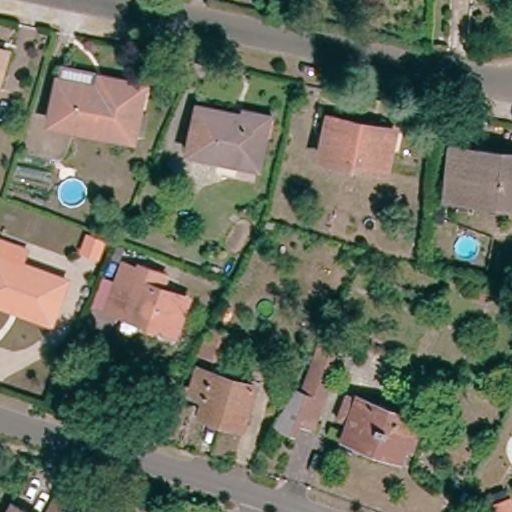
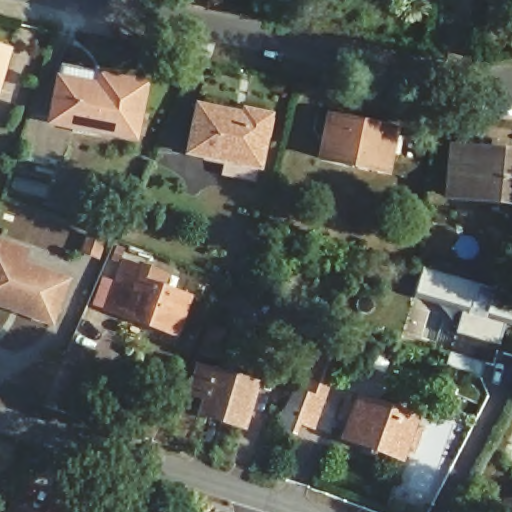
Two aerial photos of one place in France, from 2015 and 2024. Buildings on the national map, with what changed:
unchanged [(0,74),(0,50),(7,52),(0,74)]
unchanged [(98,89),(101,77),(145,86),(134,140),(51,124),(59,82),(98,89)]
unchanged [(239,179),(242,166),(189,155),(199,109),(244,119),(245,114),(269,119),(258,169),(255,182),(239,179)]
unchanged [(323,161),(332,118),(374,127),(393,131),(392,136),(385,173),(323,161)]
unchanged [(450,197),(454,150),(475,152),(512,156),(512,203),(450,197)]
unchanged [(22,267),(65,283),(51,321),(19,310),(0,303),(0,243),(27,252),(22,267)]
new [(499,346),(454,334),(460,312),(415,300),(424,267),(481,282),(475,303),(488,307),(491,296),(512,302),(512,326),(505,324),(499,346)]
unchanged [(112,316),(90,307),(107,270),(126,277),(142,282),(139,291),(186,307),(175,343),(126,327),(110,322),(112,316)]
unchanged [(212,330),(226,335),(219,359),(200,353),(212,330)]
unchanged [(317,427),(305,422),(301,433),(280,426),(298,391),(307,393),(330,331),(350,338),(317,427)]
unchanged [(255,386),(243,427),(201,416),(205,398),(192,395),(199,369),(255,386)]
unchanged [(412,380),(430,386),(425,401),(407,395),(412,380)]
unchanged [(416,425),(412,435),(421,438),(415,456),(406,452),(402,464),(344,444),(350,428),(339,425),(347,401),(416,425)]
unchanged [(62,496),(92,511),(91,512),(54,512),(62,496)]
unchanged [(511,497),(512,501),(512,512),(498,512),(495,502),(511,497)]
unchanged [(17,504),(33,512),(13,512),(17,504)]

